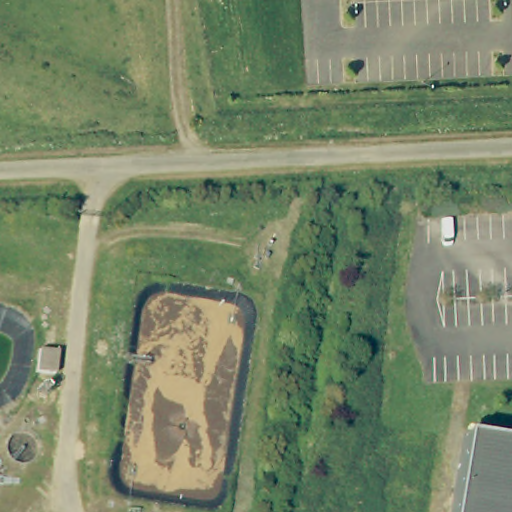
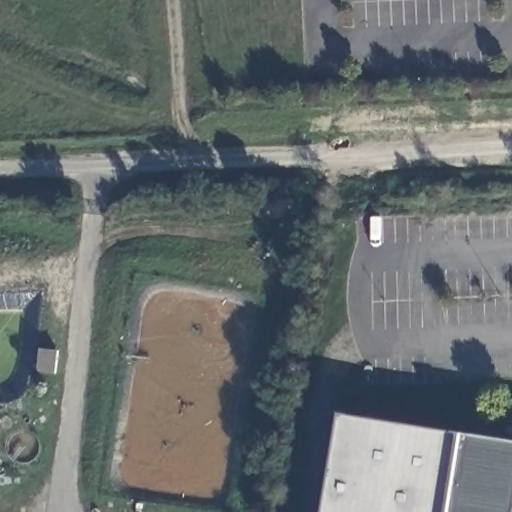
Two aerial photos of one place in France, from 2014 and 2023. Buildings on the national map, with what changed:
unchanged [(46,350),(64,352),(60,374),(43,372),(46,350)]
new [(324,512),(338,418),(463,438),(451,512),(324,512)]
unchanged [(451,512),(463,438),(512,446),(512,512),(451,512)]

